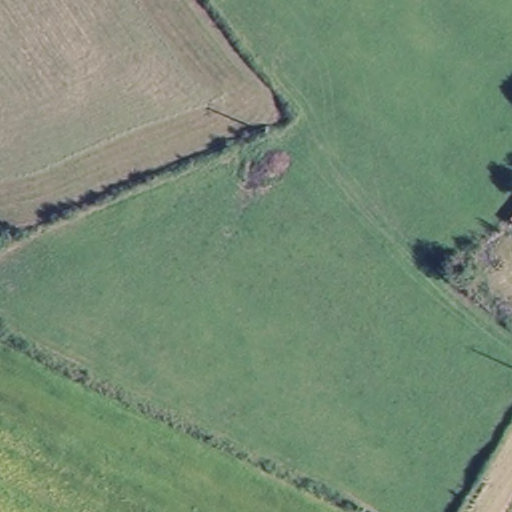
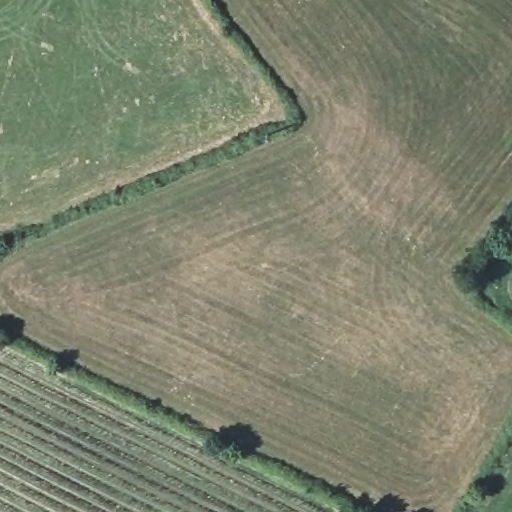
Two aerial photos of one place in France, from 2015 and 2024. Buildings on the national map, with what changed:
unchanged [(512,215),(512,219),(510,218),(512,215)]

